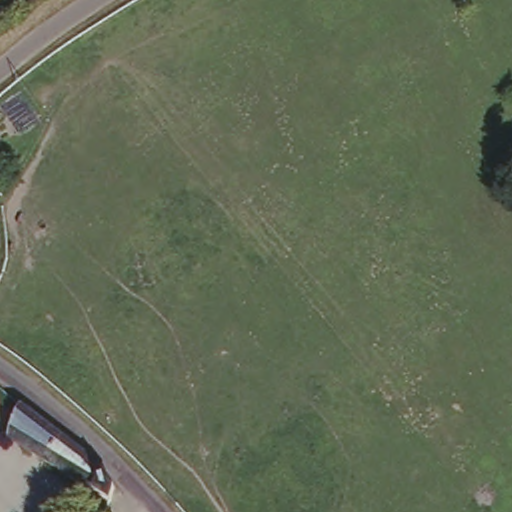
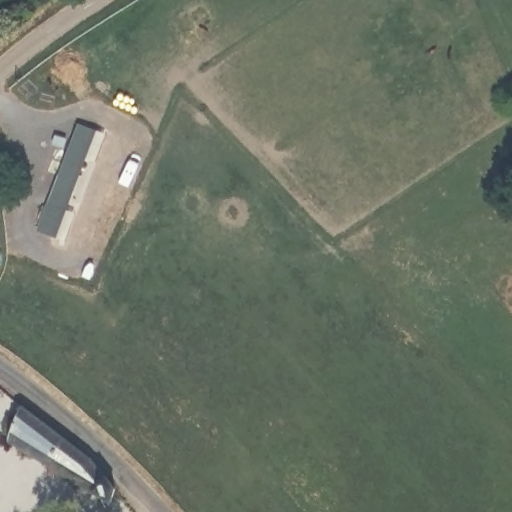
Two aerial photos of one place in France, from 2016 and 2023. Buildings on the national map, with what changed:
new [(97,129),(56,238),(37,231),(78,122),(97,129)]
unchanged [(92,456),(119,488),(113,499),(11,436),(25,404),(26,405),(92,456)]

